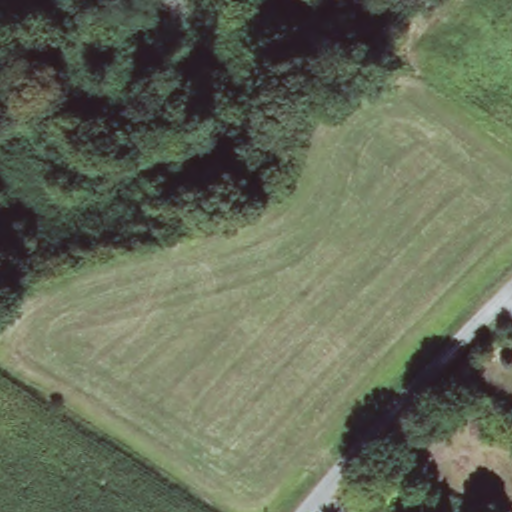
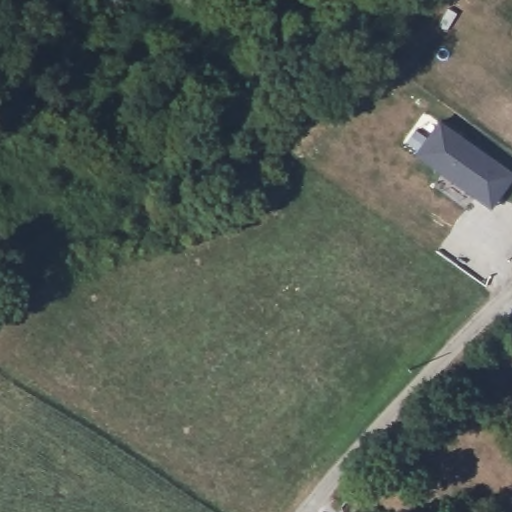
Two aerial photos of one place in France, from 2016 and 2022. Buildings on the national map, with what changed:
new [(485,197),(425,155),(449,122),(508,165),(512,167),(512,191),(500,208),(485,197)]

